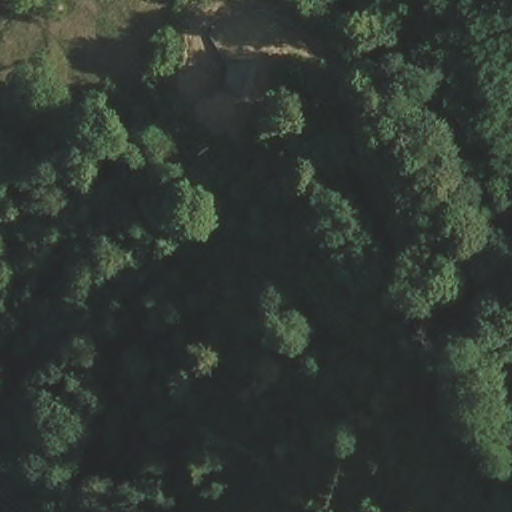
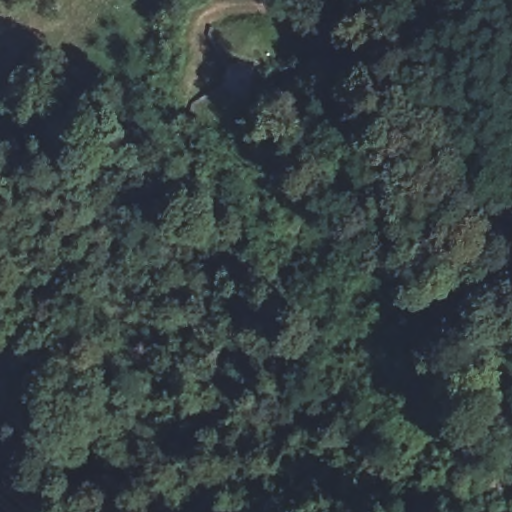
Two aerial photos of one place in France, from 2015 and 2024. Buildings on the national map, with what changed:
unchanged [(252,71),(247,95),(226,90),(233,71),(230,68),(252,71)]

